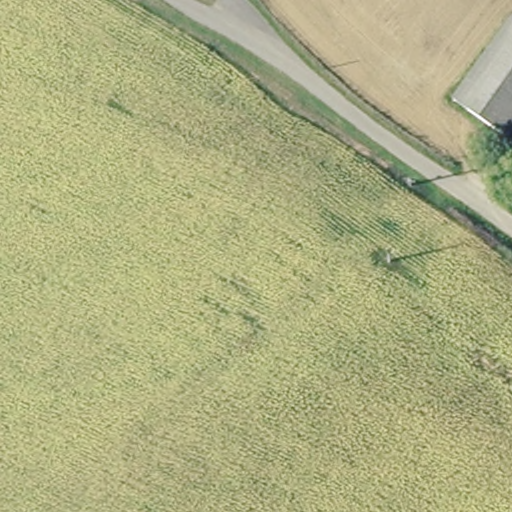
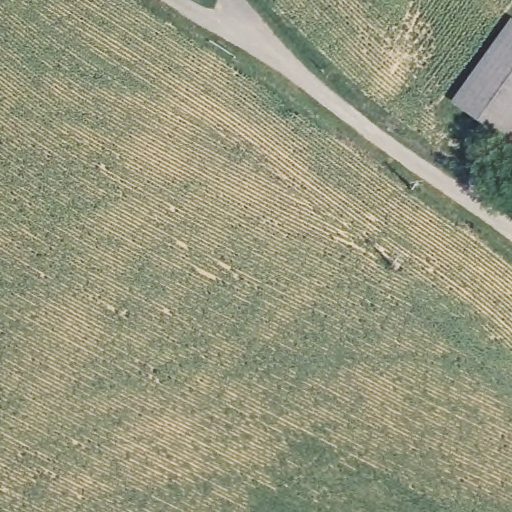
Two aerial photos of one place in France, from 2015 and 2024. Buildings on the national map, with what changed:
unchanged [(512,39),(512,138),(507,144),(457,104),(512,39)]

